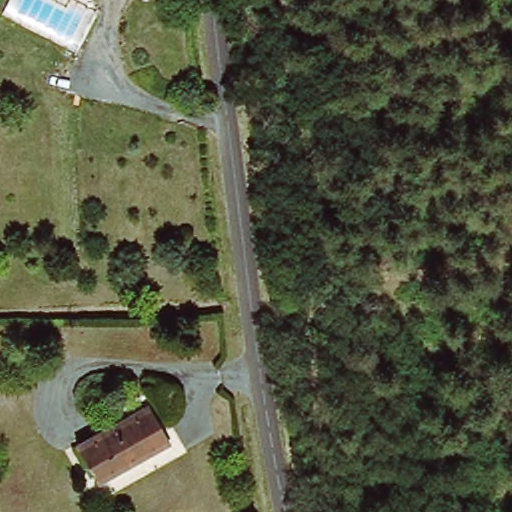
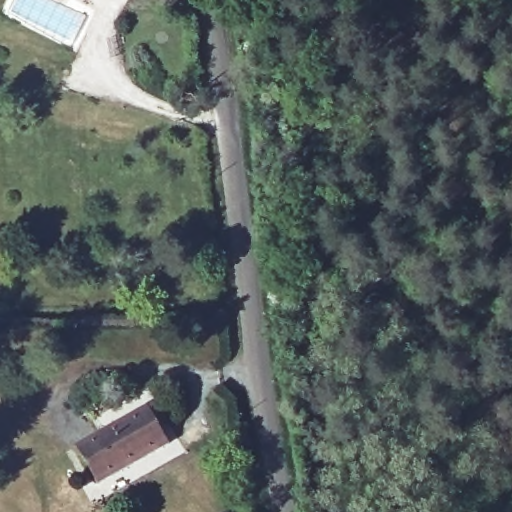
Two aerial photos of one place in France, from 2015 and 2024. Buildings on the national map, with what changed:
unchanged [(170,444),(97,485),(75,445),(148,405),(170,444)]

